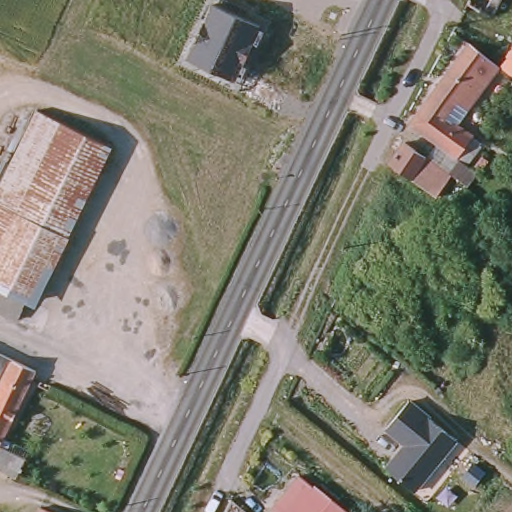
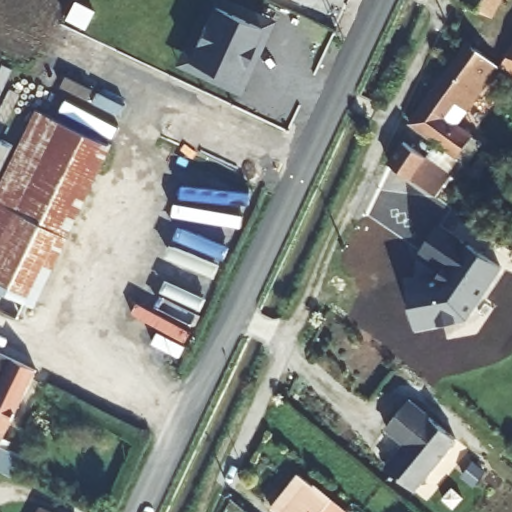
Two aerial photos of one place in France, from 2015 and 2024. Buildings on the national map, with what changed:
unchanged [(467,2),(469,0),(501,0),(492,15),(467,2)]
unchanged [(261,25),(235,80),(188,57),(213,3),(261,25)]
unchanged [(412,119),(466,39),(497,64),(452,125),(478,146),(466,161),(461,157),(412,119)]
unchanged [(512,45),(512,70),(500,60),(512,45)]
unchanged [(0,291),(0,201),(39,116),(110,150),(66,239),(62,236),(28,307),(0,291)]
unchanged [(450,178),(445,183),(435,198),(397,172),(388,165),(403,144),(450,178)]
new [(439,277),(442,271),(420,254),(441,223),(503,268),(468,319),(416,330),(410,281),(439,277)]
unchanged [(28,307),(20,324),(0,314),(0,291),(28,307)]
unchanged [(36,370),(1,444),(27,457),(17,478),(16,478),(0,469),(0,352),(36,370)]
unchanged [(431,414),(428,417),(428,418),(459,441),(416,493),(385,467),(403,444),(386,430),(410,398),(431,414)]
unchanged [(310,483),(344,512),(287,512),(310,483)]

